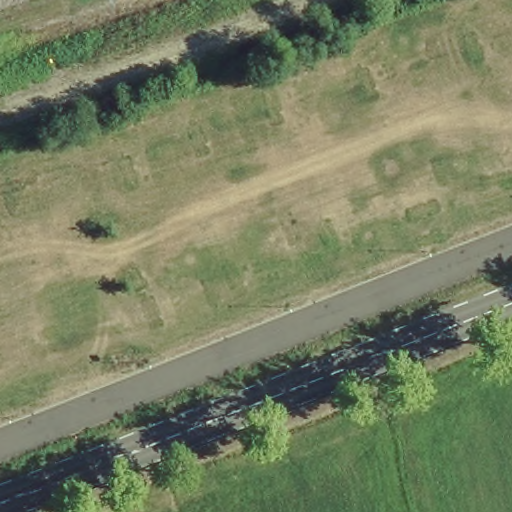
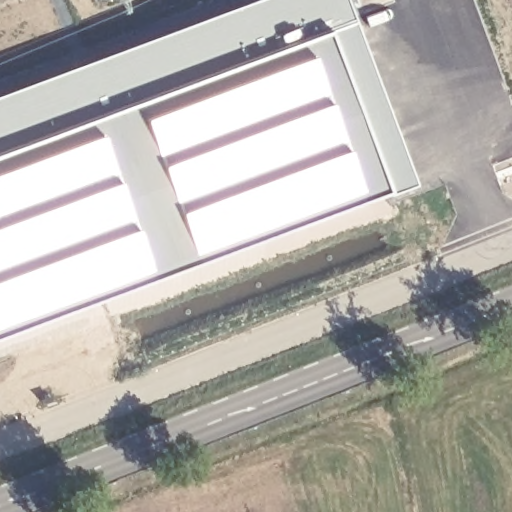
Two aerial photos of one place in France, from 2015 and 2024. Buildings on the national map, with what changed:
new [(415,184),(0,337),(0,96),(256,0),(343,0),(415,184)]

